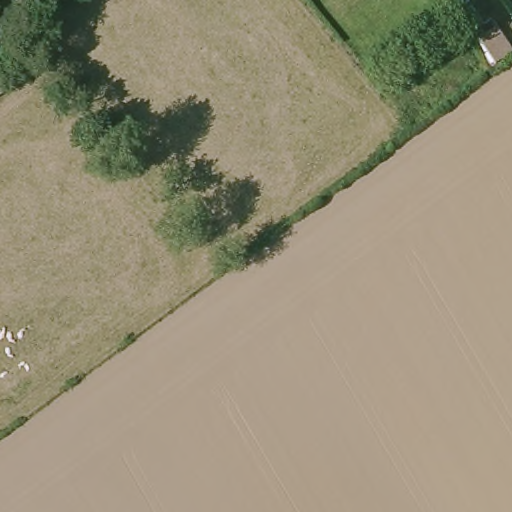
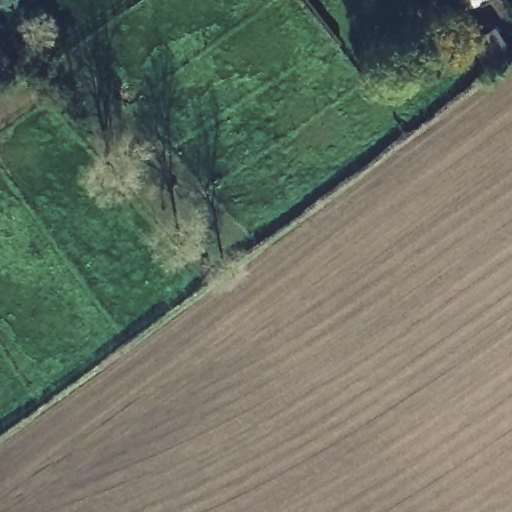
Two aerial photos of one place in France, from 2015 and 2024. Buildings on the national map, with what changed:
[]

